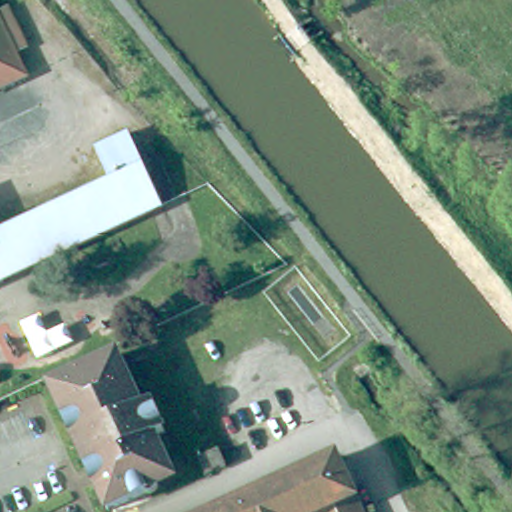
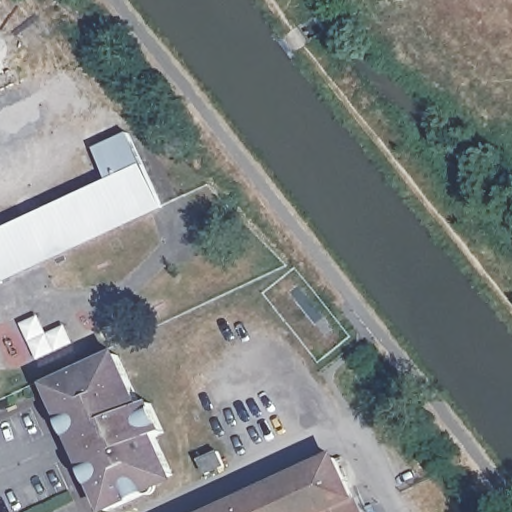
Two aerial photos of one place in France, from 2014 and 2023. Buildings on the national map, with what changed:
unchanged [(0,86),(0,38),(18,77),(0,86)]
unchanged [(66,205),(109,185),(95,153),(130,137),(163,211),(0,287),(0,219),(59,192),(66,205)]
unchanged [(96,482),(89,466),(82,469),(71,444),(69,442),(76,439),(62,410),(56,413),(52,405),(46,391),(42,386),(110,355),(134,407),(143,403),(157,432),(149,437),(166,473),(141,485),(144,491),(102,512),(89,485),(96,482)]
unchanged [(219,452),(222,459),(226,467),(210,474),(206,467),(202,458),(219,452)]
unchanged [(337,458),(344,473),(362,512),(221,512),(337,458)]

